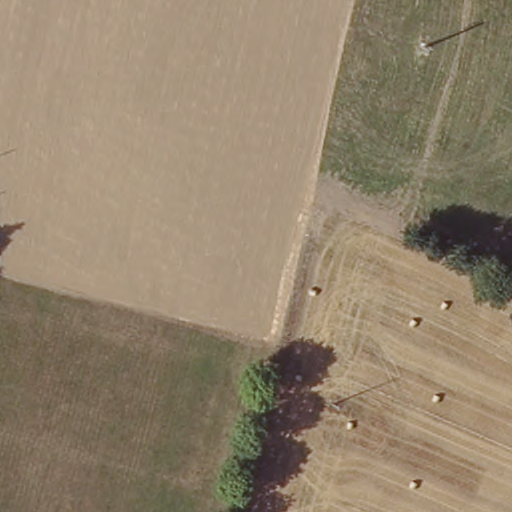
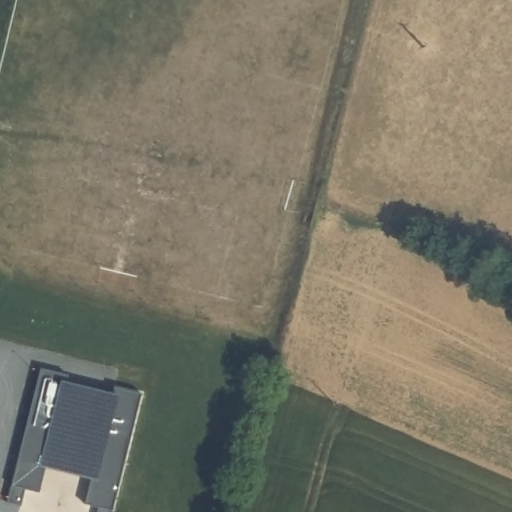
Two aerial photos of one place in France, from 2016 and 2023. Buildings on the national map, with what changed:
new [(140,393),(111,512),(97,512),(98,508),(84,503),(90,479),(44,467),(38,492),(24,489),(20,506),(6,502),(40,370),(69,376),(140,393)]

